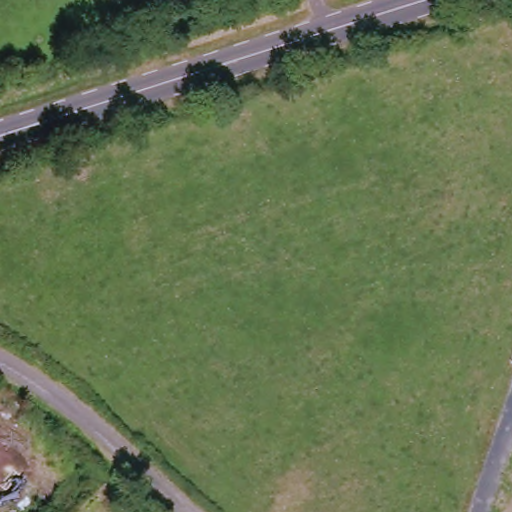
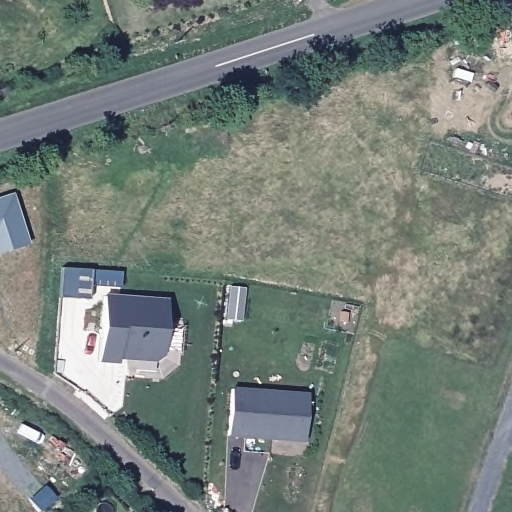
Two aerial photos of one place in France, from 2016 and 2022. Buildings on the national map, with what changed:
new [(105,296),(166,301),(161,357),(155,362),(120,359),(118,365),(99,363),(105,296)]
new [(232,387),(307,394),(302,443),(228,437),(232,387)]

